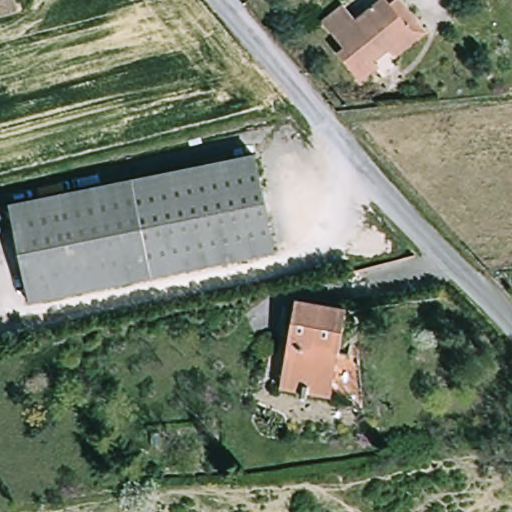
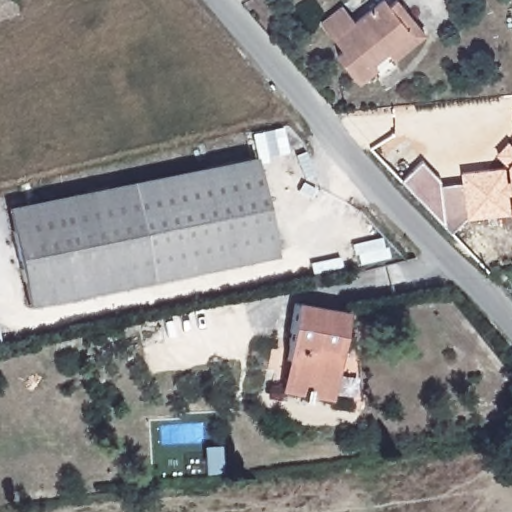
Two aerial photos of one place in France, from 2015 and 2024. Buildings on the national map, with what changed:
unchanged [(16,11),(0,16),(0,0),(13,0),(16,11)]
unchanged [(382,68),(365,82),(341,54),(347,49),(326,23),(346,6),(358,22),(385,0),(389,0),(394,6),(401,0),(428,33),(398,59),(392,52),(378,64),(382,68)]
new [(452,232),(402,181),(422,162),(441,180),(441,185),(463,182),(461,171),(506,166),(495,154),(508,140),(512,143),(512,211),(466,218),(452,232)]
unchanged [(273,255),(27,305),(7,207),(253,157),(273,255)]
unchanged [(285,359),(295,302),(345,311),(330,398),(285,390),(280,389),(285,359)]

